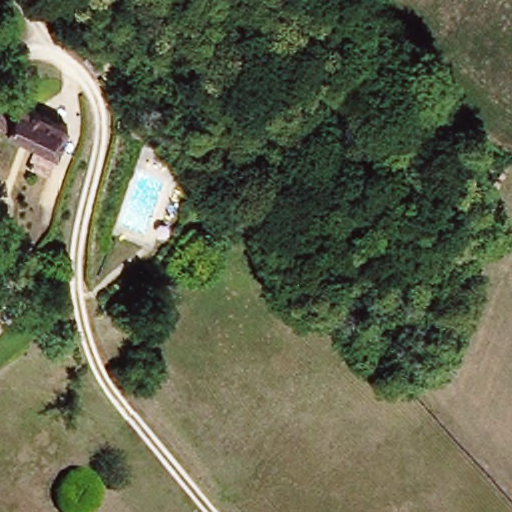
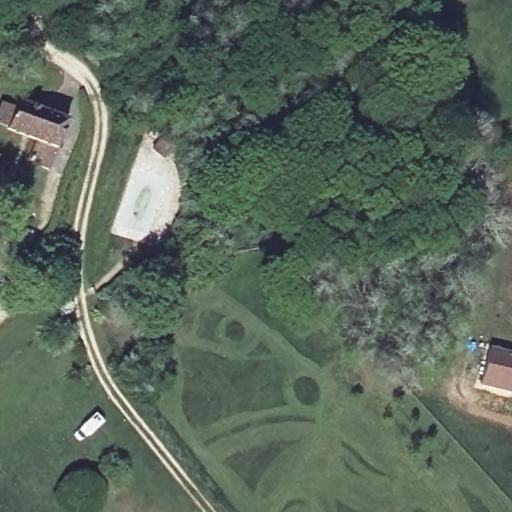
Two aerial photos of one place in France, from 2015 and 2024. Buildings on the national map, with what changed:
unchanged [(82,129),(59,174),(44,167),(52,151),(14,128),(0,122),(0,92),(1,90),(25,101),(21,111),(30,114),(36,103),(82,129)]
new [(482,384),(490,349),(512,354),(512,391),(482,384)]

